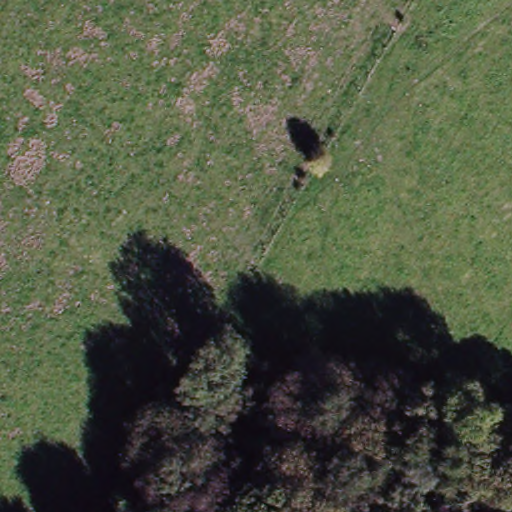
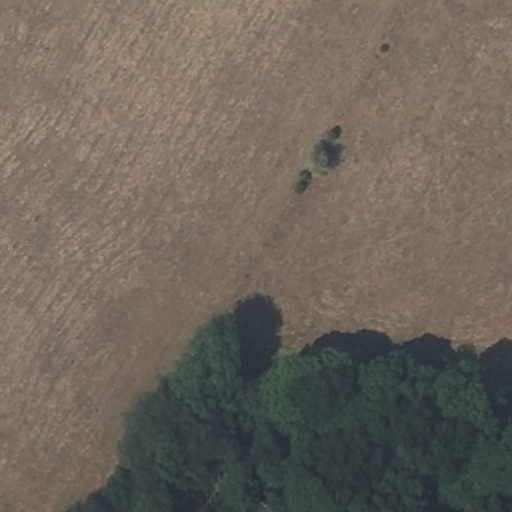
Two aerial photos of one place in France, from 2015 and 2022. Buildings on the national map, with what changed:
[]

